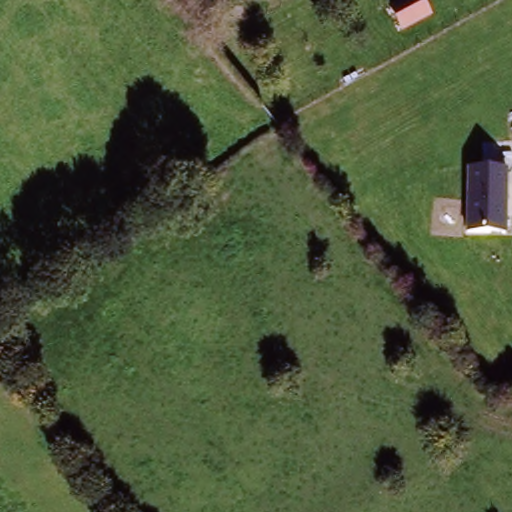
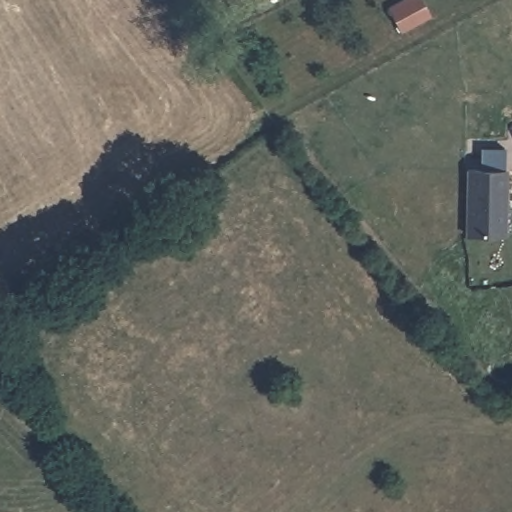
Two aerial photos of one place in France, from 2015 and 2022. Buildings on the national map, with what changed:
unchanged [(504,170),(506,235),(468,235),(465,170),(504,170)]

